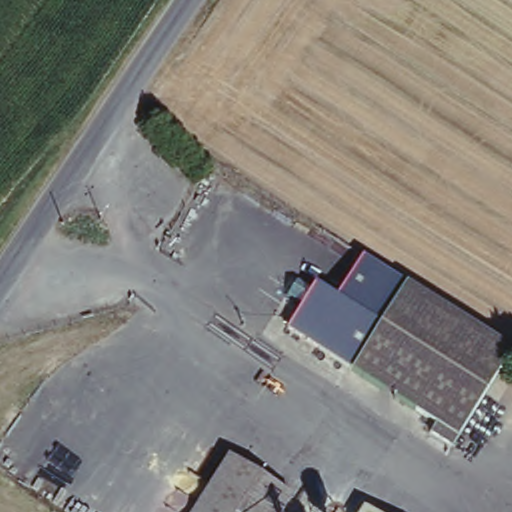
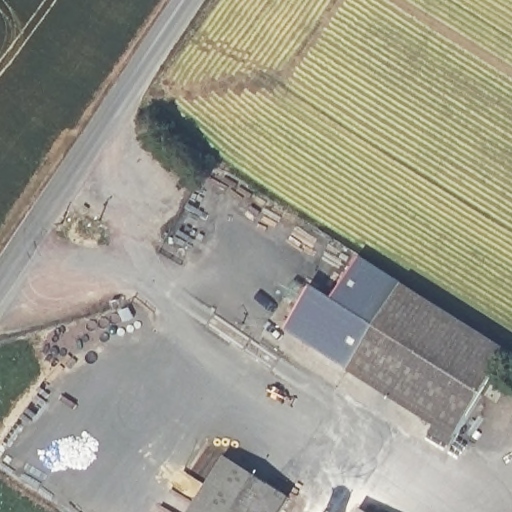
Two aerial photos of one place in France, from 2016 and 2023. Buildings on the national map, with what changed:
unchanged [(413,290),(512,353),(512,355),(454,448),(431,433),(437,425),(283,327),(298,305),(283,296),(293,281),(307,290),(312,282),(336,297),(362,260),(413,292),(413,290)]
unchanged [(189,512),(224,459),(285,498),(276,512),(189,512)]

